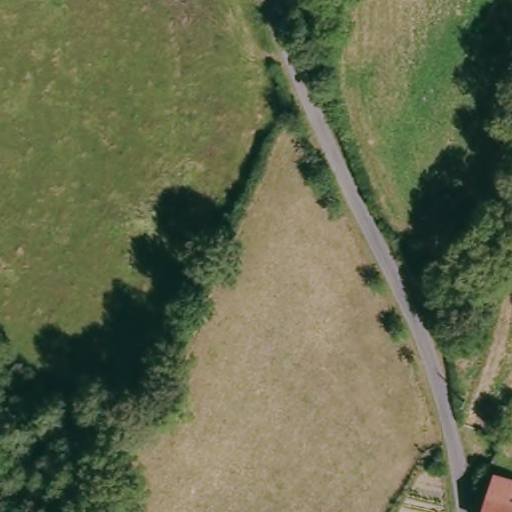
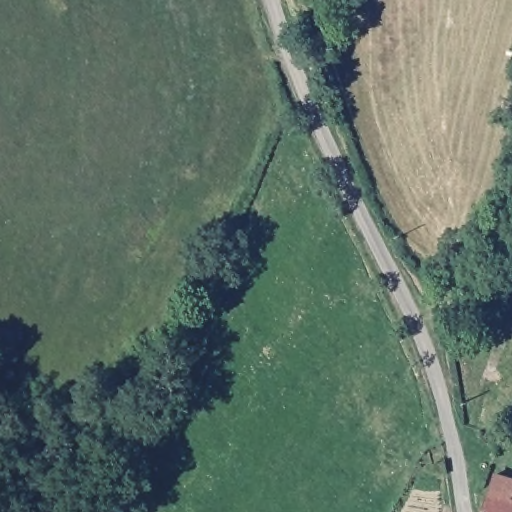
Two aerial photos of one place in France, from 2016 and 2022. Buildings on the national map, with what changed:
unchanged [(512,480),(512,512),(485,512),(490,497),(496,475),(512,480)]

